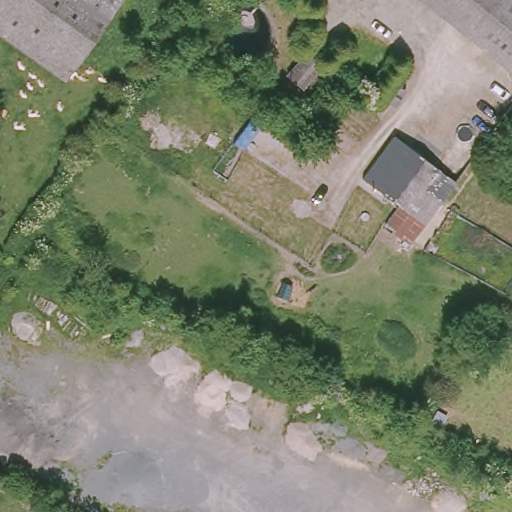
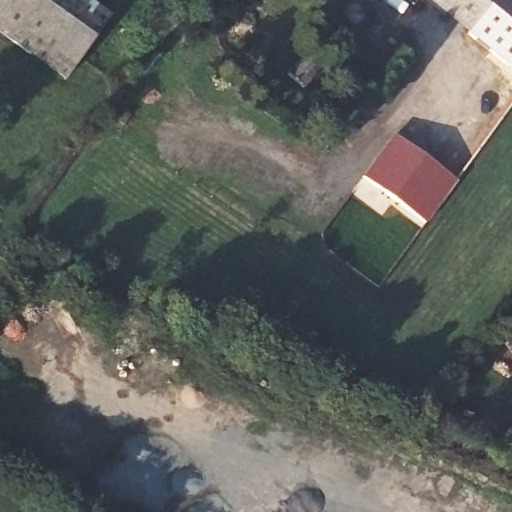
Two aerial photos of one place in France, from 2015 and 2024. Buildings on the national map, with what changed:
unchanged [(0,32),(0,0),(116,0),(60,75),(0,32)]
unchanged [(444,14),(427,0),(455,0),(454,1),(444,14)]
unchanged [(455,0),(512,0),(512,69),(444,14),(454,1),(455,0)]
unchanged [(335,72),(315,97),(297,82),(318,58),(335,72)]
unchanged [(419,223),(359,175),(392,132),(434,165),(454,181),(419,223)]

